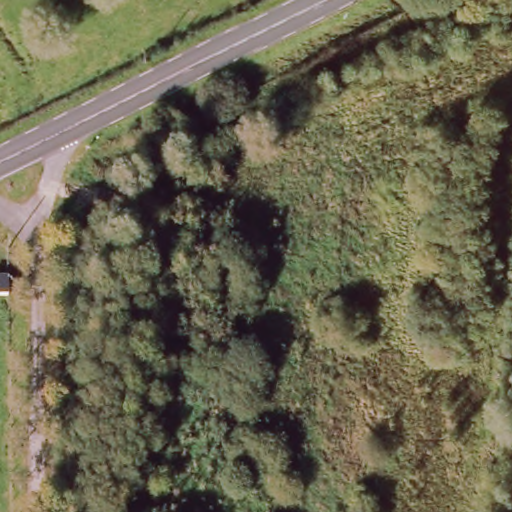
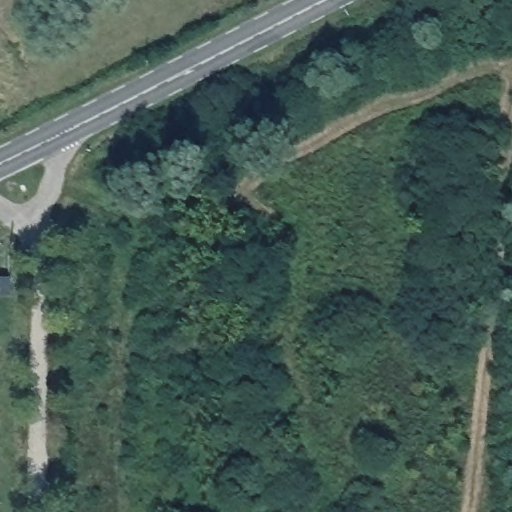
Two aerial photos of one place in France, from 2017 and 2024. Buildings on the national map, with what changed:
unchanged [(0,278),(7,277),(7,297),(0,297),(0,278)]

